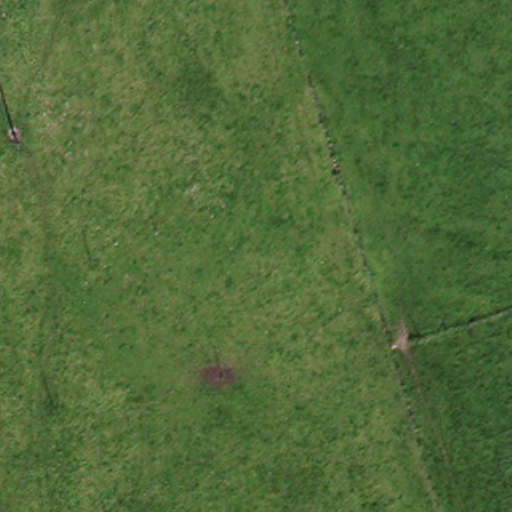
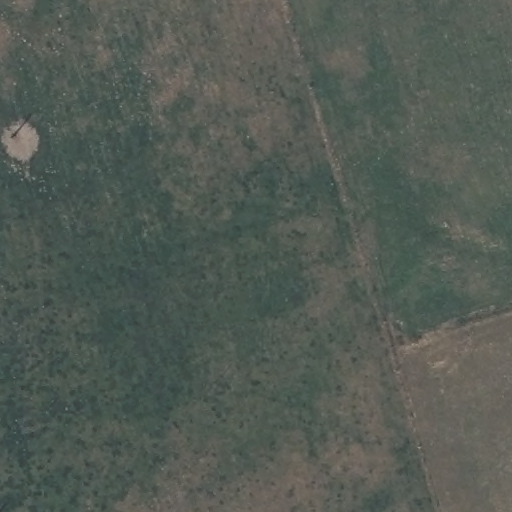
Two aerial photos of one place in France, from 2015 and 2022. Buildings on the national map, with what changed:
[]

